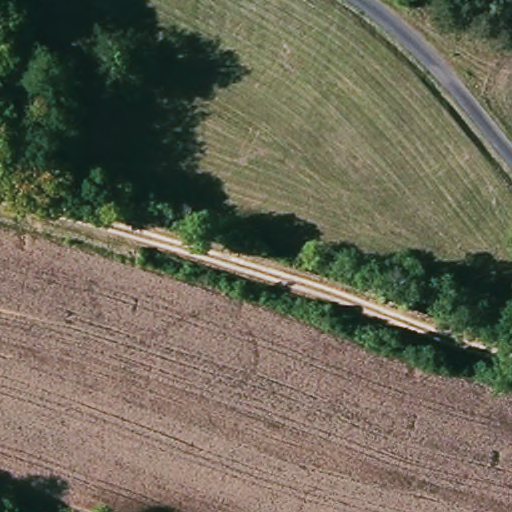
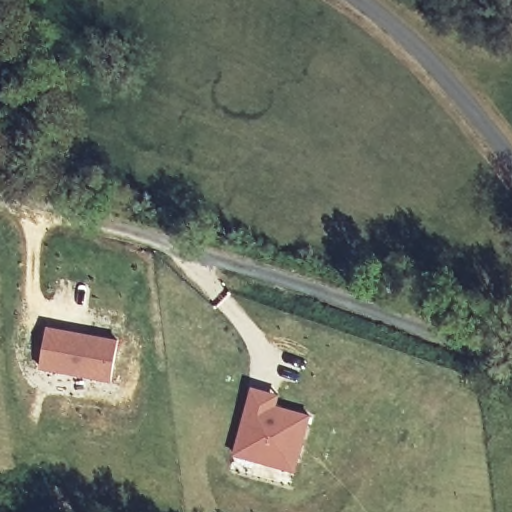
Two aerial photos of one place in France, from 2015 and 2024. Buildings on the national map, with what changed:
new [(118,339),(111,382),(40,371),(47,327),(118,339)]
new [(280,394),(276,406),(312,414),(295,473),(232,456),(252,387),(280,394)]

